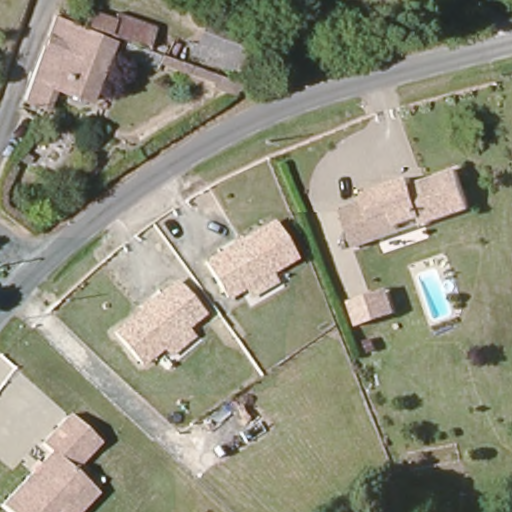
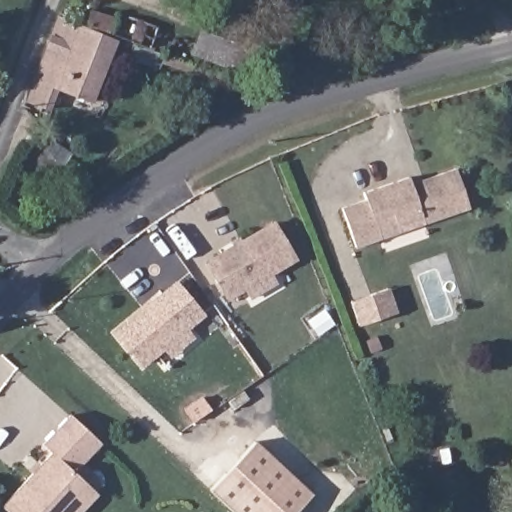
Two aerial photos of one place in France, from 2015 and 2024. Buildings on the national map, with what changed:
unchanged [(161,31),(154,51),(116,36),(92,27),(96,14),(120,24),(123,16),(161,31)]
unchanged [(252,37),(238,74),(190,55),(205,19),(252,37)]
unchanged [(63,21),(121,44),(96,105),(61,92),(53,113),(32,105),(40,84),(63,21)]
unchanged [(164,72),(126,57),(131,44),(169,58),(164,72)]
unchanged [(236,97),(225,93),(227,87),(193,74),(195,69),(246,88),(236,97)]
unchanged [(356,246),(342,207),(366,199),(363,192),(408,176),(411,183),(455,167),(469,206),(423,222),(401,230),(356,246)]
unchanged [(252,306),(246,294),(229,304),(210,268),(276,230),(296,265),(272,279),(278,290),(252,306)]
unchanged [(171,360),(164,350),(144,368),(117,336),(176,286),(203,317),(187,331),(194,340),(171,360)]
unchanged [(352,300),(377,292),(390,287),(398,311),(385,316),(360,324),(352,300)]
unchanged [(72,472),(95,493),(78,512),(51,512),(8,512),(1,506),(50,453),(41,445),(70,415),(99,443),(72,472)]
new [(254,439),(310,491),(291,512),(233,512),(208,488),(254,439)]

